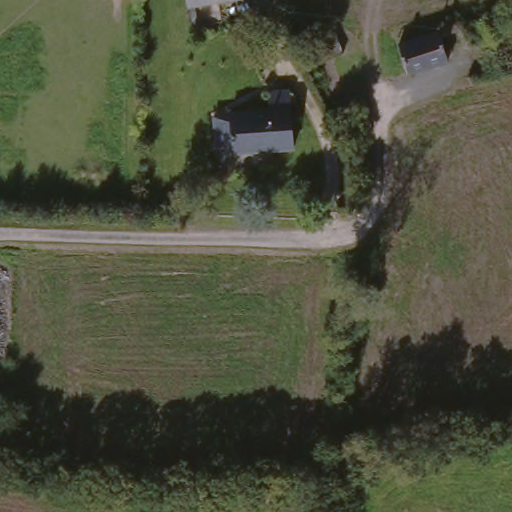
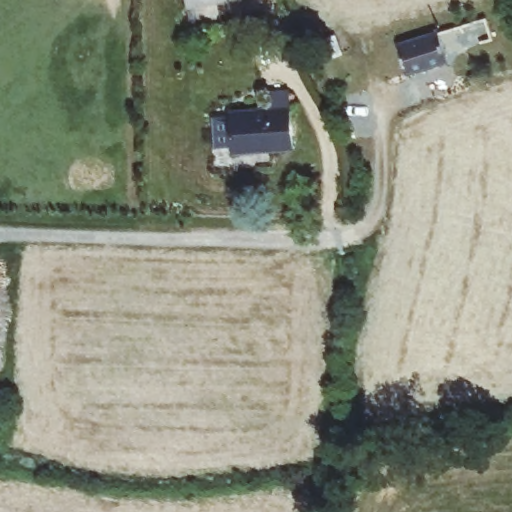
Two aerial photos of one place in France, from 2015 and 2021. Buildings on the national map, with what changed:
unchanged [(178,11),(176,0),(235,0),(236,5),(178,11)]
unchanged [(446,66),(407,77),(401,49),(439,36),(446,66)]
unchanged [(232,115),(268,112),(268,97),(291,95),(295,154),(235,161),(232,115)]

